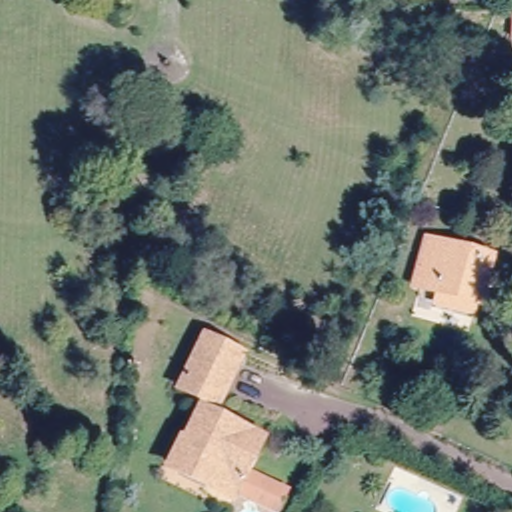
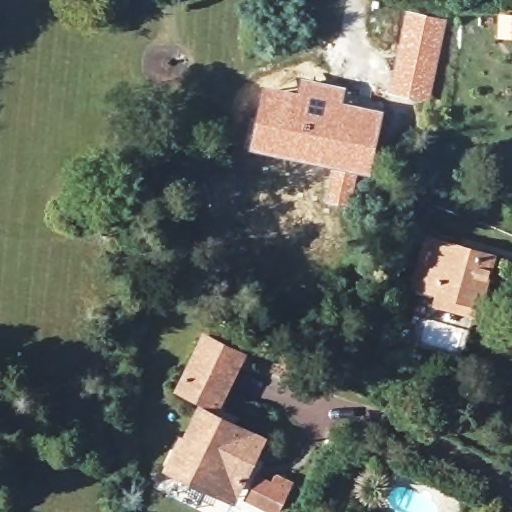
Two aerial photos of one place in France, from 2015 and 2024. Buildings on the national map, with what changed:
new [(405,10),(447,18),(430,102),(387,91),(405,10)]
new [(512,39),(511,39),(512,14),(512,39)]
unchanged [(500,43),(495,42),(479,41),(481,21),(497,22),(502,22),(500,43)]
new [(250,149),(263,85),(296,90),(299,77),(347,86),(345,100),(384,110),(371,174),(358,172),(352,207),(325,202),(332,166),(250,149)]
unchanged [(437,299),(440,289),(414,280),(428,235),(491,255),(476,301),(472,311),(437,299)]
unchanged [(209,477),(177,460),(188,435),(184,433),(207,383),(182,370),(203,327),(221,336),(219,342),(239,351),(213,408),(220,411),(237,419),(260,430),(235,482),(231,488),(209,477)]
unchanged [(283,484),(275,502),(245,487),(254,470),(283,484)]

